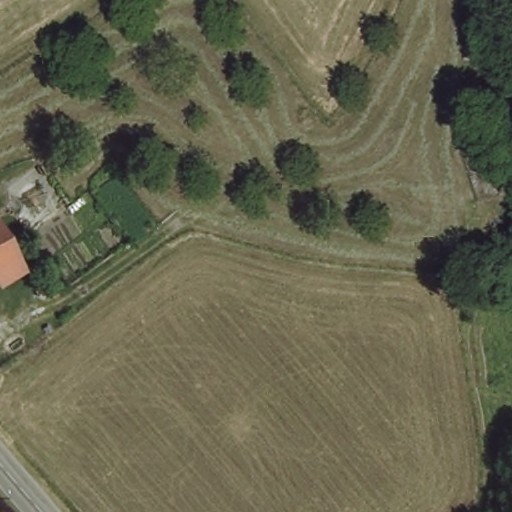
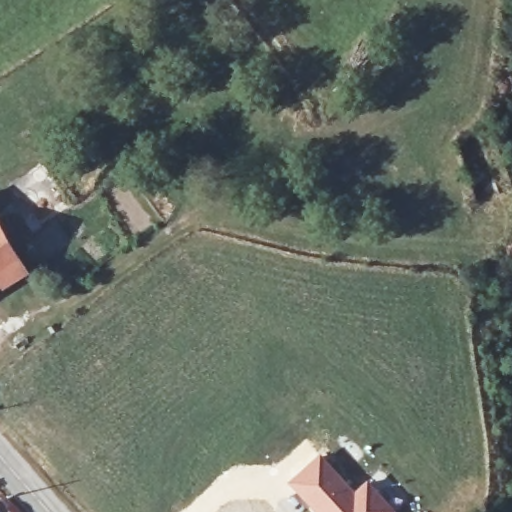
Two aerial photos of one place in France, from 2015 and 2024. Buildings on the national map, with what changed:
unchanged [(25,277),(0,290),(0,228),(25,277)]
new [(320,452),(354,489),(367,478),(397,512),(314,512),(287,482),(320,452)]

